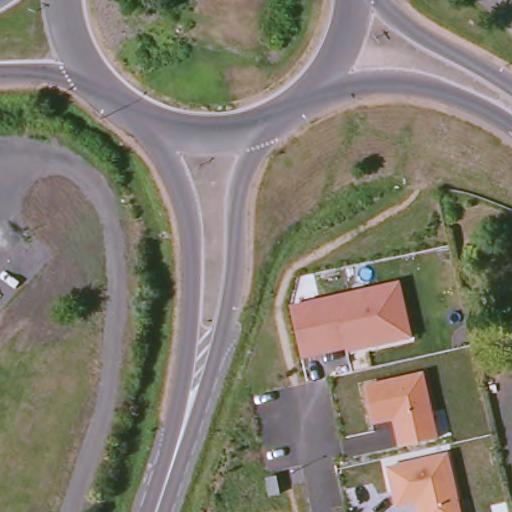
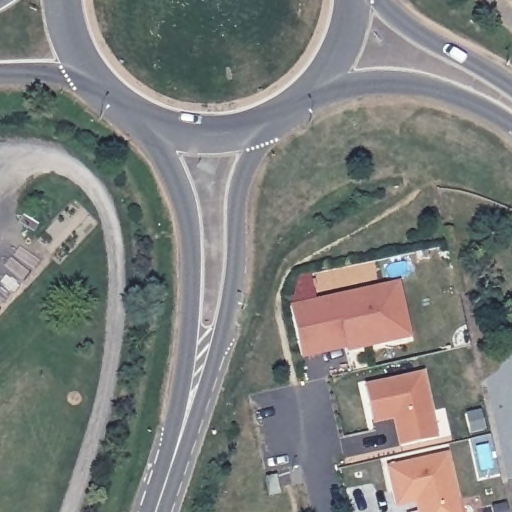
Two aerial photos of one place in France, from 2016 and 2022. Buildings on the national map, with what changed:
unchanged [(346,351),(345,346),(300,355),(290,303),(398,279),(410,335),(346,351)]
unchanged [(397,445),(391,418),(371,422),(362,383),(422,370),(437,435),(397,445)]
unchanged [(393,506),(385,465),(447,450),(461,512),(415,512),(413,502),(393,506)]

